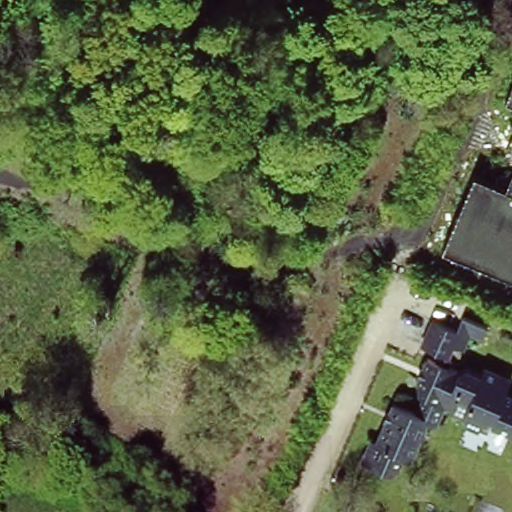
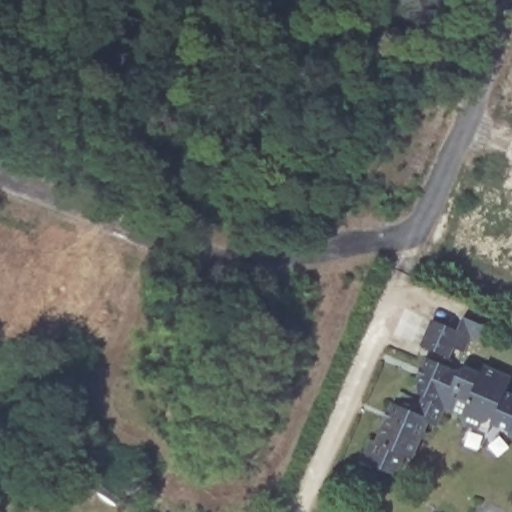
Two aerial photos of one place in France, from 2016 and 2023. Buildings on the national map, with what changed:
demolished [(512,89),(512,100),(509,98),(512,89)]
demolished [(472,169),(506,183),(512,169),(512,275),(441,245),(472,169)]
unchanged [(370,437),(379,438),(390,402),(419,414),(429,396),(412,391),(425,356),(440,360),(442,352),(419,349),(432,320),(473,340),(462,365),(483,372),(489,364),(512,380),(512,384),(502,394),(512,398),(512,435),(492,425),(490,437),(455,424),(458,413),(445,409),(439,431),(427,427),(413,464),(400,455),(392,476),(359,467),(370,437)]

